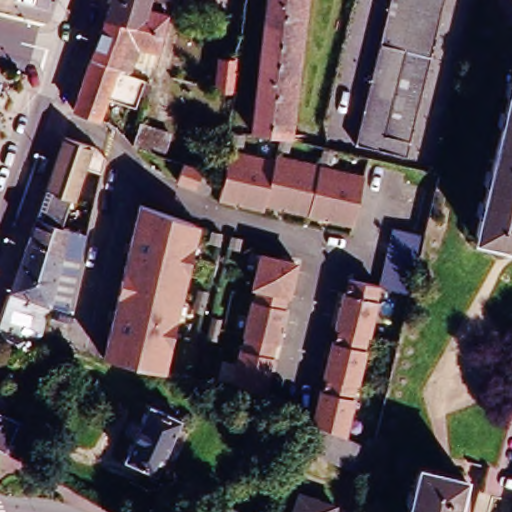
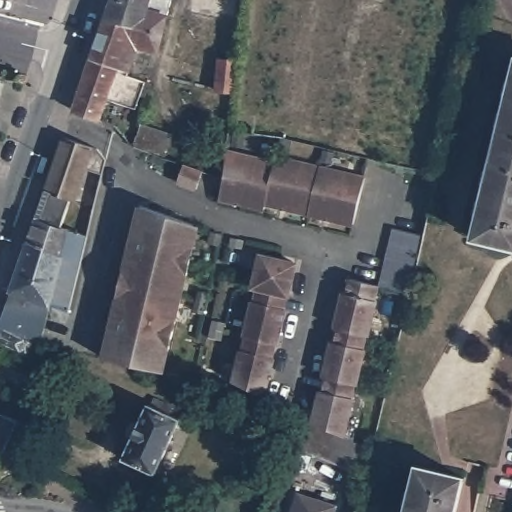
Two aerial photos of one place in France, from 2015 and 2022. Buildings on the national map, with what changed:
unchanged [(166,0),(151,51),(132,46),(122,75),(84,63),(106,0),(164,0),(166,0)]
demolished [(277,137),(249,134),(264,0),(297,0),(282,137),(277,137)]
demolished [(403,160),(353,147),(390,0),(444,0),(403,160)]
unchanged [(238,77),(236,92),(219,90),(222,57),(239,59),(238,77)]
unchanged [(92,121),(68,113),(84,63),(122,75),(136,80),(129,105),(112,100),(110,107),(103,125),(92,121)]
unchanged [(512,67),(512,251),(471,241),(512,67)]
unchanged [(2,79),(0,85),(0,78),(2,79)]
unchanged [(50,296),(65,249),(27,235),(46,184),(64,131),(91,140),(73,192),(67,190),(58,217),(88,226),(74,283),(70,305),(50,296)]
unchanged [(237,137),(236,148),(225,147),(226,136),(237,137)]
unchanged [(277,137),(282,137),(288,139),(285,149),(275,147),(277,137)]
unchanged [(336,149),(334,160),(324,157),(326,146),(336,149)]
unchanged [(47,151),(41,170),(34,168),(40,149),(47,151)]
unchanged [(262,209),(261,214),(218,204),(222,180),(224,156),(272,167),(262,209)]
unchanged [(305,220),(262,209),(272,167),(273,163),(316,174),(305,220)]
unchanged [(316,174),(360,184),(349,230),(305,220),(316,174)]
unchanged [(188,230),(185,242),(180,263),(171,300),(153,375),(144,373),(120,367),(94,360),(132,209),(184,228),(188,230)]
unchanged [(221,231),(231,234),(228,243),(219,240),(221,231)]
unchanged [(411,297),(381,290),(394,233),(425,240),(411,297)]
unchanged [(27,235),(65,249),(50,296),(40,334),(39,337),(31,335),(26,346),(0,334),(0,307),(27,235)]
unchanged [(238,235),(247,237),(245,247),(235,245),(238,235)]
unchanged [(259,260),(278,265),(294,268),(287,300),(284,299),(256,292),(252,291),(259,260)]
unchanged [(365,337),(337,330),(335,330),(343,295),(345,296),(349,282),(376,289),(373,303),(375,303),(367,338),(365,337)]
unchanged [(207,290),(216,292),(214,301),(212,311),(202,308),(204,299),(207,290)]
unchanged [(242,340),(251,305),(253,305),(256,292),(284,299),(281,312),(284,312),(275,347),(273,347),(244,340),(242,340)]
unchanged [(213,337),(215,327),(217,318),(227,320),(224,330),(222,340),(213,337)]
unchanged [(365,337),(362,350),(364,351),(355,386),(353,385),(325,378),(323,378),(332,343),(334,343),(337,330),(365,337)]
unchanged [(273,347),(269,360),(272,361),(261,398),(239,390),(238,390),(229,386),(238,352),(240,353),(244,340),(273,347)]
unchanged [(353,385),(350,398),(352,399),(343,435),(312,422),(320,391),(322,392),(325,378),(353,385)]
unchanged [(122,458),(150,404),(180,419),(153,475),(122,458)]
unchanged [(32,431),(22,455),(17,453),(14,459),(0,451),(0,416),(32,431)]
unchanged [(361,472),(302,446),(313,425),(373,451),(361,472)]
unchanged [(461,481),(454,512),(405,512),(415,469),(461,481)]
unchanged [(331,512),(295,512),(299,500),(331,512)]

